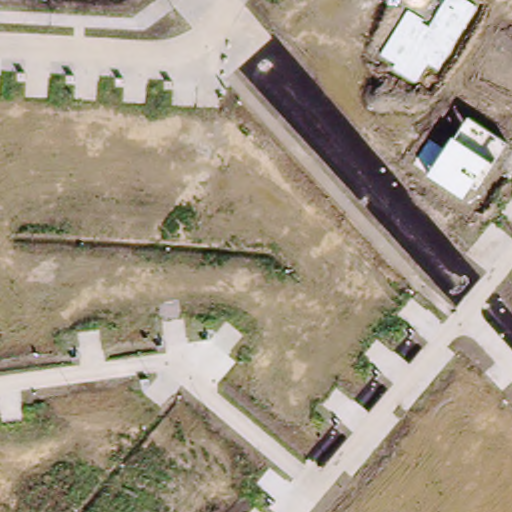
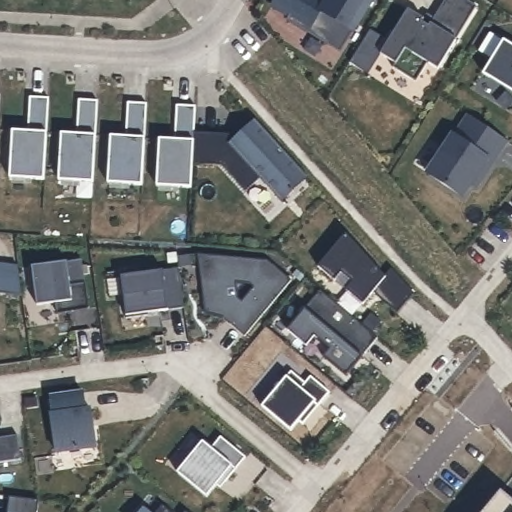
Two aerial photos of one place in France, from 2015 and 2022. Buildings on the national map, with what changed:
new [(321,65),(288,35),(292,27),(279,15),(288,0),(319,0),(327,5),(330,0),(389,0),(385,8),(375,1),(345,49),(330,74),(321,65)]
new [(425,18),(422,24),(428,28),(432,24),(447,0),(466,0),(477,7),(456,40),(437,69),(429,63),(417,82),(392,69),(395,62),(380,53),(407,11),(425,18)]
demolished [(404,0),(509,0),(485,44),(404,0)]
new [(512,46),(512,92),(485,75),(494,60),(505,42),(512,46)]
new [(29,116),(30,96),(50,97),(45,179),(10,177),(13,115),(29,116)]
new [(78,119),(80,100),(98,100),(93,181),(59,180),(62,118),(78,119)]
new [(115,122),(131,124),(131,104),(151,105),(146,186),(111,184),(115,122)]
new [(282,201),(265,181),(250,194),(226,167),(196,165),(195,189),(161,187),(164,125),(180,126),(181,107),(200,108),(198,135),(228,137),(241,138),(260,121),(263,125),(310,176),(313,180),(286,205),(282,201)]
unchanged [(508,140),(476,188),(470,183),(461,195),(428,171),(467,114),(508,140)]
new [(351,240),(391,283),(365,306),(351,291),(358,285),(347,272),(340,279),(325,263),(351,240)]
new [(206,314),(198,255),(268,261),(292,281),(248,332),(231,317),(224,311),(206,314)]
new [(37,306),(32,267),(51,265),(82,260),(89,311),(73,313),(58,315),(56,303),(71,301),(37,306)]
new [(0,299),(0,268),(18,266),(18,270),(22,295),(7,297),(0,299)]
new [(153,319),(153,317),(131,320),(125,278),(183,270),(189,310),(163,313),(163,317),(153,319)]
new [(325,292),(382,340),(351,378),(328,359),(335,351),(320,338),(311,348),(292,332),(325,292)]
new [(295,435),(267,411),(295,377),(328,405),(318,416),(306,431),(302,428),(315,413),(295,435)]
new [(61,415),(58,399),(95,394),(97,411),(102,410),(107,448),(63,454),(58,416),(61,415)]
new [(178,467),(204,436),(212,443),(222,432),(246,452),(227,476),(223,473),(207,492),(178,467)]
new [(20,460),(0,462),(0,437),(17,435),(20,460)]
new [(227,476),(222,482),(218,480),(223,473),(227,476)]
new [(512,501),(512,512),(485,512),(501,492),(512,501)]
new [(40,512),(5,512),(7,496),(41,500),(40,512)]

